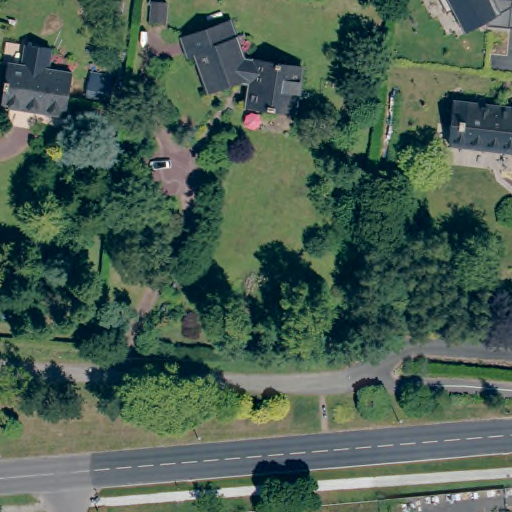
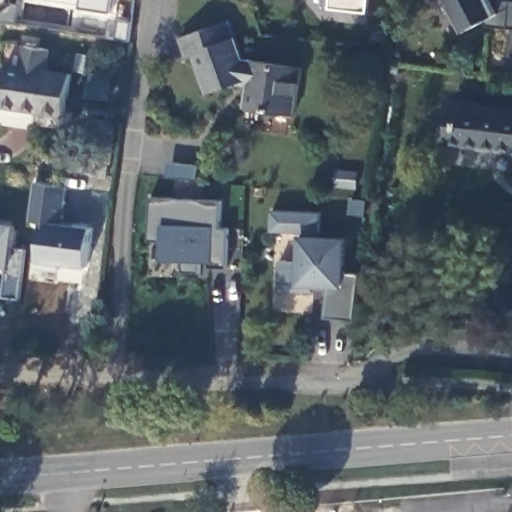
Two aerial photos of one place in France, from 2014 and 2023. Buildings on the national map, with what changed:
new [(111,13),(80,8),(81,0),(114,0),(111,13)]
new [(368,13),(330,8),(331,0),(369,0),(368,13)]
unchanged [(451,10),(444,13),(438,0),(501,0),(512,1),(512,28),(476,26),(463,32),(451,10)]
unchanged [(308,68),(301,114),(250,106),(254,83),(244,82),(213,92),(199,55),(193,57),(186,38),(235,21),(249,59),(258,60),(308,68)]
unchanged [(8,64),(72,74),(65,116),(1,106),(8,64)]
unchanged [(512,109),(512,148),(484,144),(483,148),(447,144),(452,102),(512,109)]
new [(64,218),(61,219),(60,223),(92,227),(87,267),(59,263),(59,271),(38,268),(38,261),(35,260),(40,222),(30,220),(35,182),(67,187),(64,218)]
new [(150,196),(222,199),(221,226),(229,227),(228,267),(209,266),(209,260),(201,260),(200,272),(182,271),(183,259),(162,258),(163,240),(149,240),(150,196)]
new [(322,211),(321,236),(348,236),(347,271),(361,273),(355,320),(326,317),(330,287),(312,287),(313,293),(280,292),(281,261),(300,262),(300,238),(299,232),(272,231),(274,210),(322,211)]

